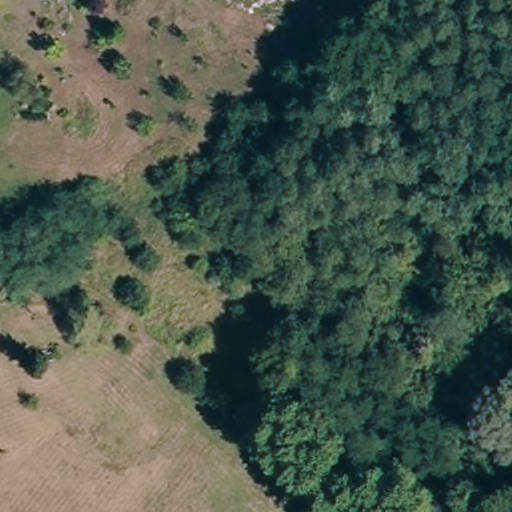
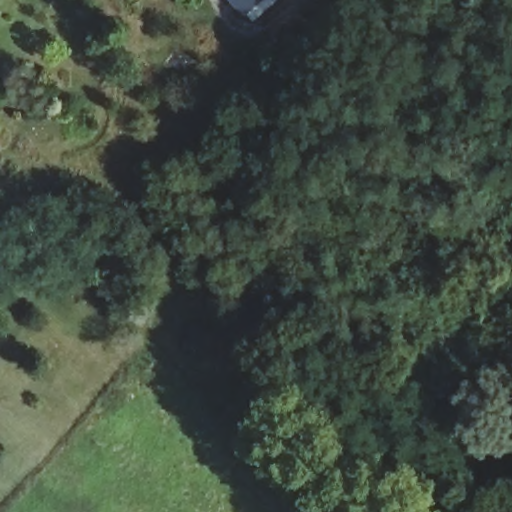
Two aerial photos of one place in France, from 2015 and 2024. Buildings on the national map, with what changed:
new [(246,16),(232,0),(263,0),(246,16)]

